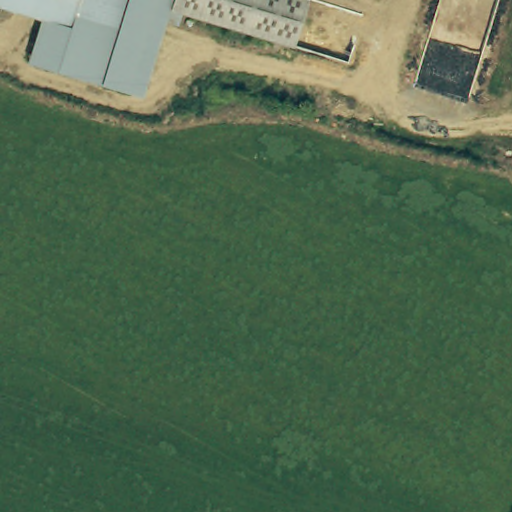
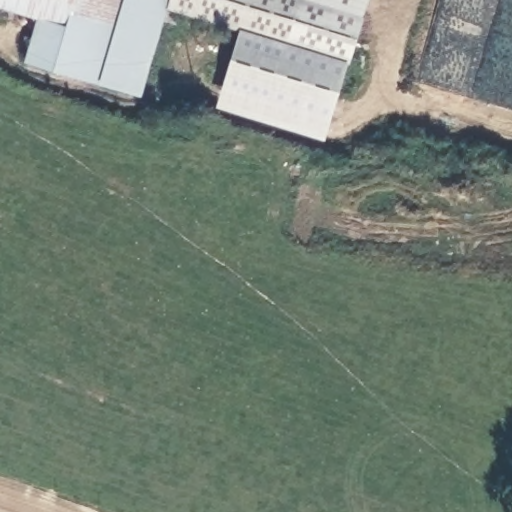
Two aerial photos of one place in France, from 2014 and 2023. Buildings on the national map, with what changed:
unchanged [(290,40),(178,7),(175,20),(149,12),(133,66),(126,89),(55,68),(28,60),(41,16),(0,3),(0,0),(301,0),(290,40)]
new [(176,12),(178,7),(290,40),(301,0),(336,0),(365,8),(350,64),(176,12)]
unchanged [(365,8),(336,0),(367,0),(365,8)]
new [(133,66),(149,12),(165,16),(143,95),(126,89),(133,66)]
new [(350,64),(325,144),(214,108),(240,31),(350,64)]

